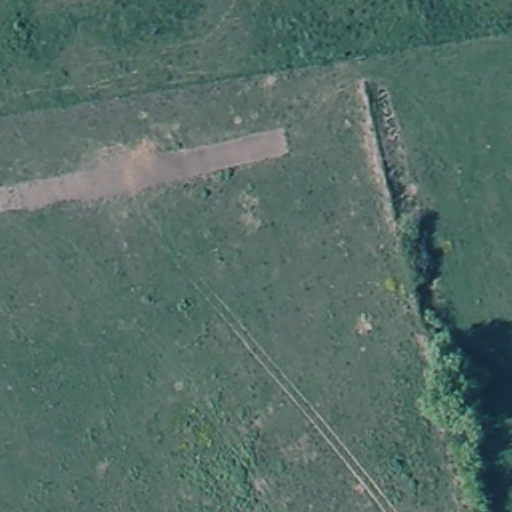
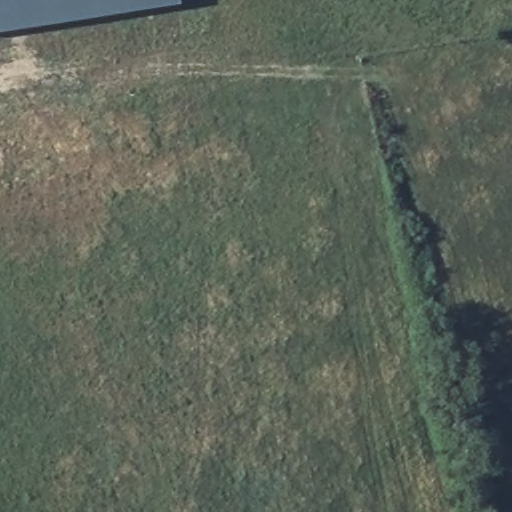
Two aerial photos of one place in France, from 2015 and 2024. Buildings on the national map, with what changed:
new [(181,6),(0,35),(0,0),(180,0),(181,6)]

